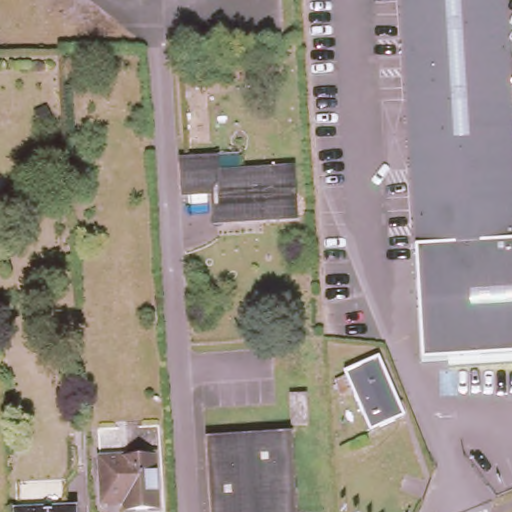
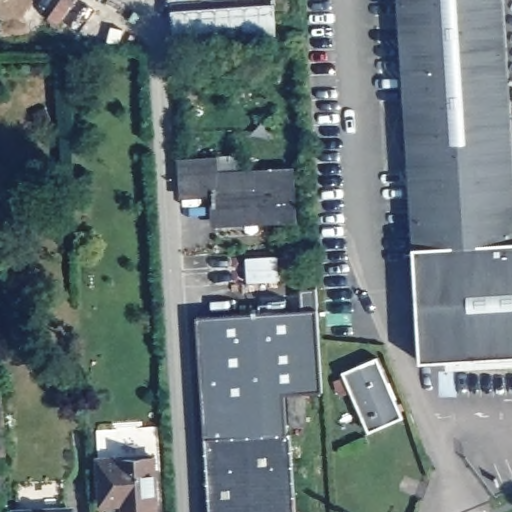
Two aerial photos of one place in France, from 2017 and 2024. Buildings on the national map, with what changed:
unchanged [(512,66),(512,241),(414,246),(401,0),(509,0),(512,66)]
new [(275,35),(174,42),(172,12),(273,5),(275,35)]
unchanged [(299,222),(221,226),(220,194),(189,195),(188,162),(217,161),(218,180),(296,175),(299,222)]
unchanged [(512,241),(512,355),(420,361),(414,246),(512,241)]
new [(280,402),(280,434),(289,433),(290,440),(209,445),(205,444),(197,316),(303,310),(302,288),(315,287),(322,391),(283,393),(284,402),(280,402)]
unchanged [(379,362),(404,420),(372,434),(347,375),(379,362)]
unchanged [(295,401),(295,433),(280,434),(280,402),(295,401)]
unchanged [(299,512),(213,512),(209,445),(295,440),(299,512)]
unchanged [(124,512),(123,502),(101,503),(98,459),(153,455),(155,510),(130,512),(124,512)]
unchanged [(38,512),(72,510),(72,512),(38,512)]

